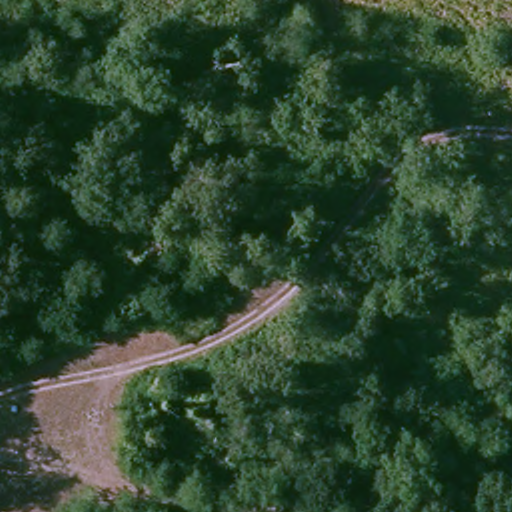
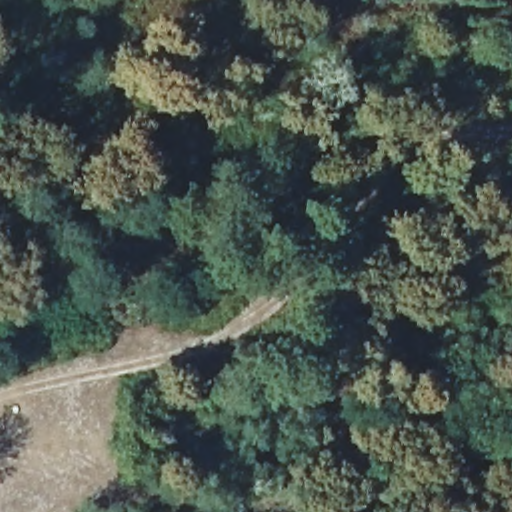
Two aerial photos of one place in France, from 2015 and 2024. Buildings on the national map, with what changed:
unchanged [(162,248),(151,295),(126,290),(138,242),(162,248)]

